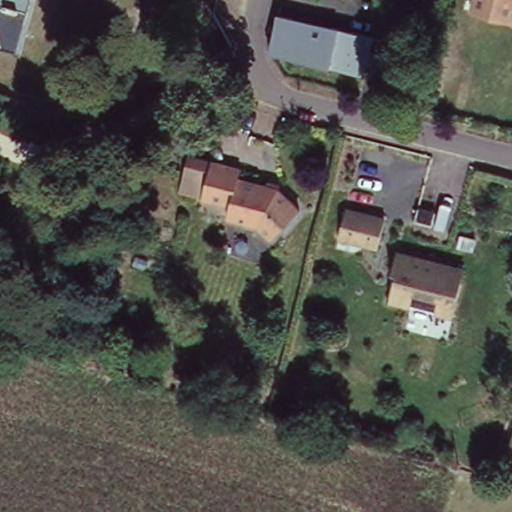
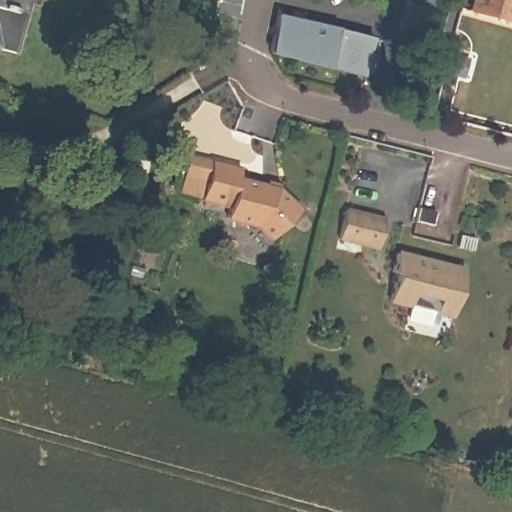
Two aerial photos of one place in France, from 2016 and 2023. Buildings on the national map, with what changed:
unchanged [(31,0),(17,53),(2,48),(0,43),(0,0),(31,0)]
unchanged [(478,0),(512,0),(512,23),(475,14),(478,0)]
unchanged [(377,38),(369,75),(273,55),(280,19),(377,38)]
unchanged [(244,165),(241,178),(268,184),(270,179),(308,210),(279,239),(267,230),(231,223),(233,211),(204,201),(206,195),(183,189),(192,155),(244,165)]
unchanged [(386,221),(379,249),(340,241),(347,211),(386,221)]
unchanged [(467,271),(455,317),(393,302),(400,275),(395,274),(400,255),(467,271)]

